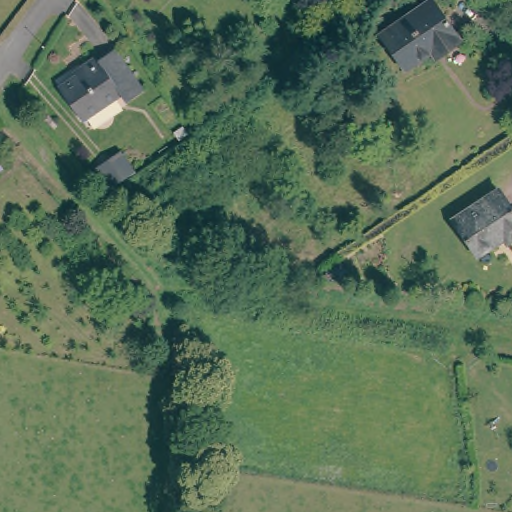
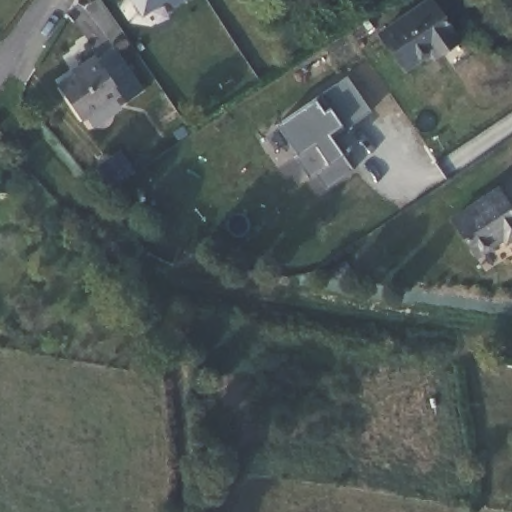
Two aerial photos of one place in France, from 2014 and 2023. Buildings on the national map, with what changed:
new [(143,14),(133,0),(165,0),(143,14)]
new [(174,7),(165,0),(185,0),(174,7)]
unchanged [(442,35),(410,62),(386,34),(425,0),(443,0),(467,27),(449,43),(442,35)]
unchanged [(100,60),(116,50),(148,92),(129,105),(123,95),(84,121),(59,88),(83,72),(80,67),(98,56),(100,60)]
new [(314,100),(347,78),(369,112),(330,139),(340,155),(351,170),(324,189),(314,174),(308,179),(292,156),(297,153),(277,125),(314,100)]
unchanged [(97,167),(114,156),(121,151),(136,172),(129,177),(112,189),(97,167)]
unchanged [(504,189),(512,202),(512,239),(510,240),(505,233),(475,252),(454,220),(504,189)]

